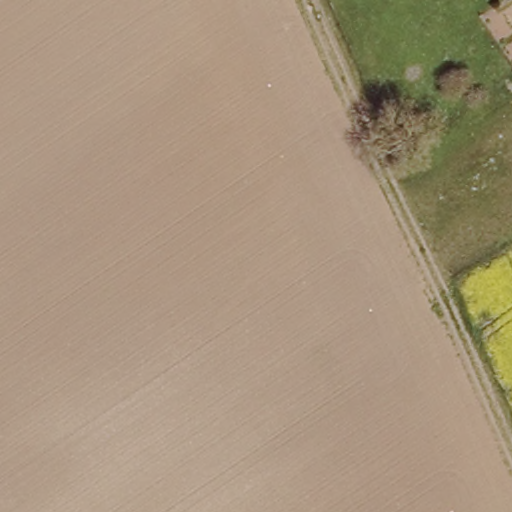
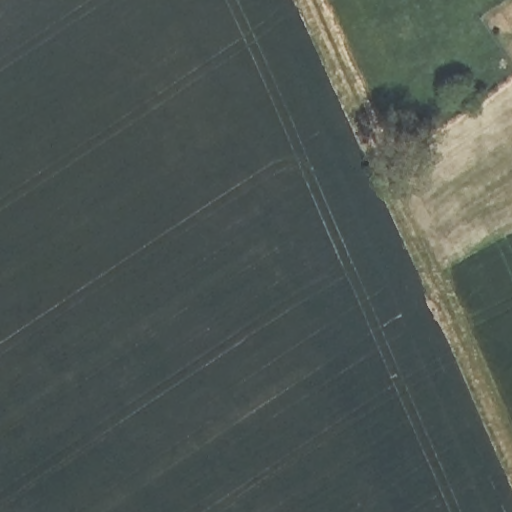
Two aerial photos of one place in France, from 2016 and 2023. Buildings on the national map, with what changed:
[]

